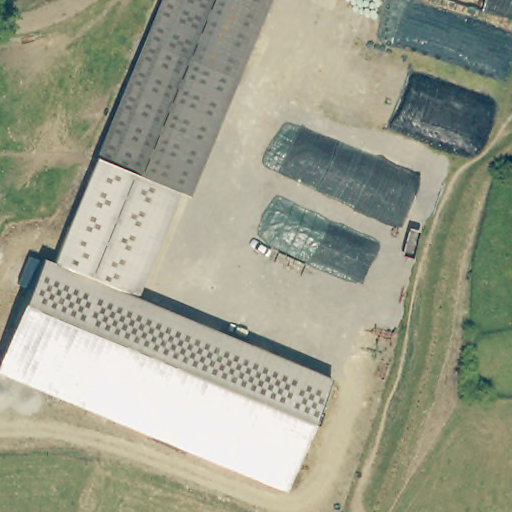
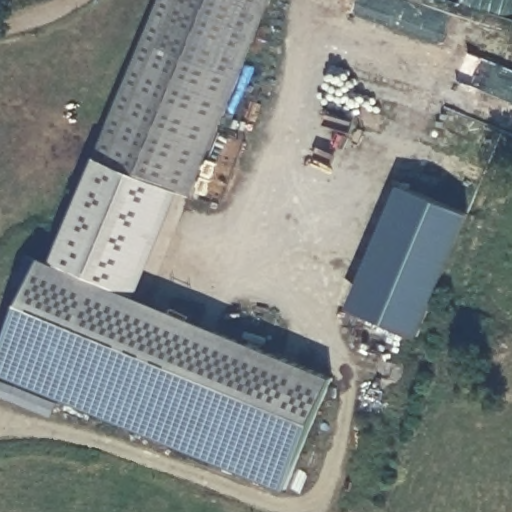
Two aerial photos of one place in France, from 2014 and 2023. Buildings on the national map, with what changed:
unchanged [(160,0),(270,0),(191,195),(94,159),(160,0)]
unchanged [(0,372),(0,360),(44,258),(50,260),(94,159),(178,190),(135,295),(330,380),(285,492),(0,372)]
new [(418,336),(349,308),(399,186),(471,215),(418,336)]

